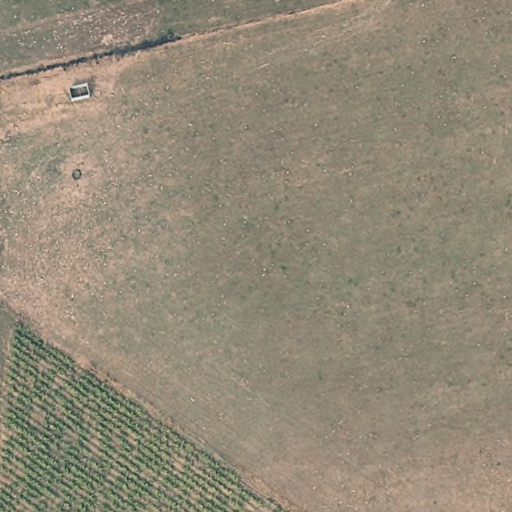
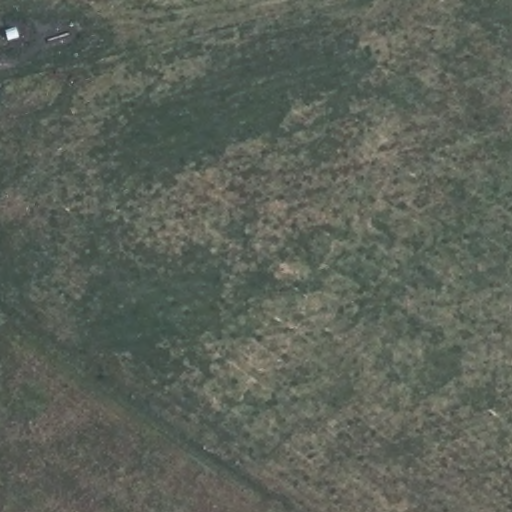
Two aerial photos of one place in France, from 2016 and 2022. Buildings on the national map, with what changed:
[]

